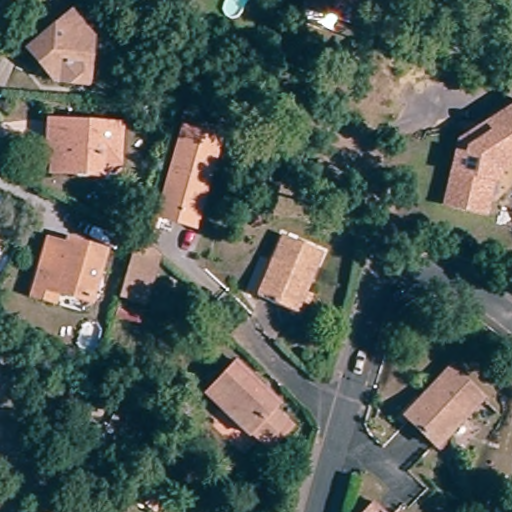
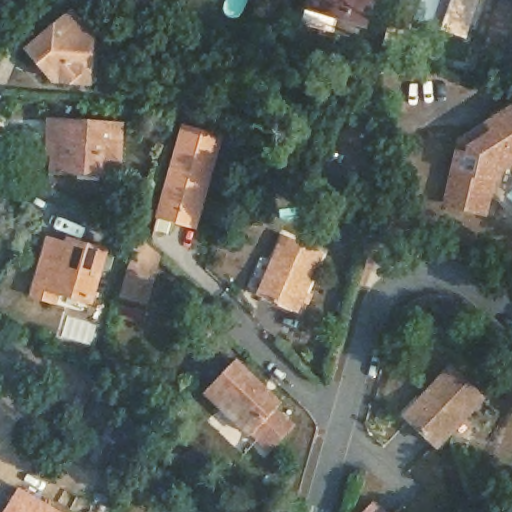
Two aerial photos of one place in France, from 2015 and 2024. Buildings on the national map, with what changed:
unchanged [(323,0),(388,0),(379,30),(319,11),(323,0)]
new [(441,31),(451,0),(478,0),(466,40),(441,31)]
unchanged [(57,84),(31,55),(69,19),(95,45),(90,85),(57,84)]
unchanged [(448,187),(456,150),(459,138),(464,135),(512,105),(512,157),(498,166),(495,178),(490,177),(485,196),(481,210),(444,201),(448,187)]
unchanged [(187,116),(229,128),(199,231),(156,216),(187,116)]
unchanged [(105,169),(104,176),(52,173),(52,126),(117,131),(116,169),(105,169)]
unchanged [(316,151),(348,174),(334,194),(302,172),(316,151)]
unchanged [(13,222),(7,233),(0,229),(0,215),(13,222)]
unchanged [(257,293),(284,238),(319,257),(290,311),(257,293)]
unchanged [(118,296),(134,239),(155,257),(142,304),(118,296)]
unchanged [(84,299),(51,290),(48,300),(28,294),(43,241),(61,246),(63,242),(80,247),(98,252),(84,299)]
unchanged [(119,320),(121,310),(139,314),(136,324),(119,320)]
unchanged [(272,413),(286,425),(268,447),(253,435),(249,439),(208,403),(234,370),(277,405),(272,413)]
unchanged [(408,419),(450,370),(481,397),(437,444),(408,419)]
new [(18,490),(61,512),(6,512),(18,490)]
unchanged [(155,491),(165,499),(157,510),(147,503),(155,491)]
unchanged [(367,503),(378,512),(359,512),(367,503)]

